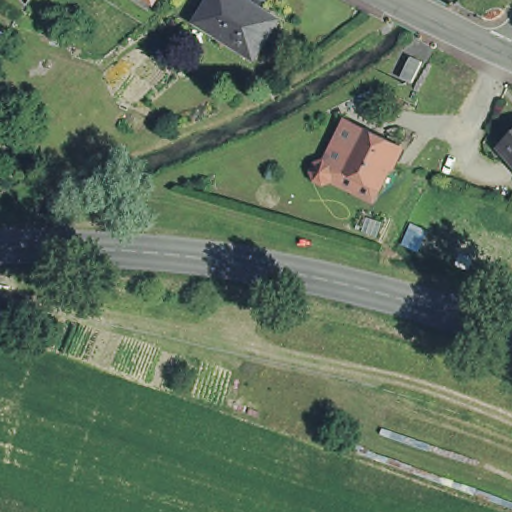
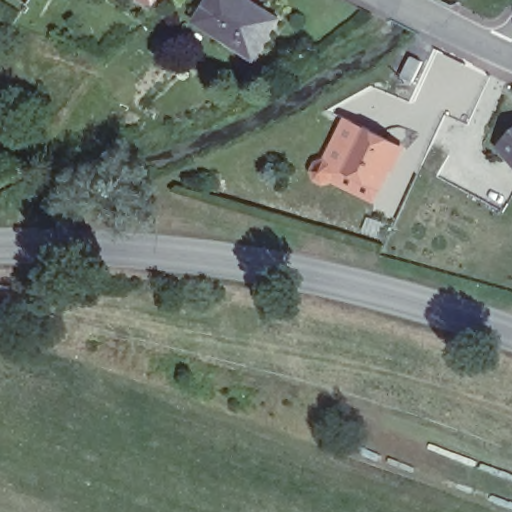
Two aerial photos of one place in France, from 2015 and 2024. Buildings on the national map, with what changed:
unchanged [(153,0),(155,0),(155,1),(153,0)]
unchanged [(249,0),(279,18),(255,57),(195,21),(209,0),(249,0)]
unchanged [(414,82),(404,76),(413,58),(424,63),(414,82)]
unchanged [(326,179),(341,148),(352,125),(371,134),(407,152),(399,169),(387,193),(380,206),(344,188),(326,179)]
unchanged [(506,145),(512,139),(512,151),(506,145)]
unchanged [(0,303),(15,310),(7,332),(0,330),(0,303)]

